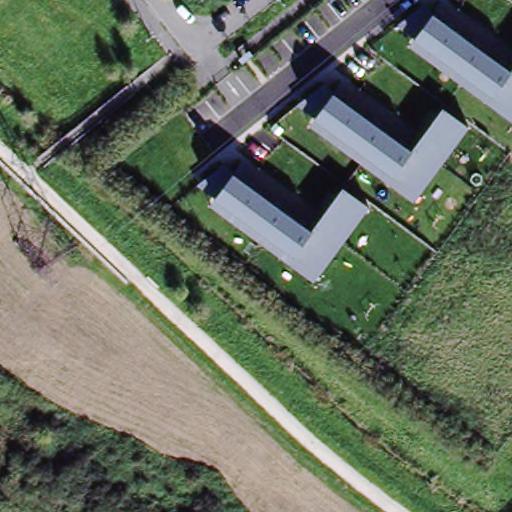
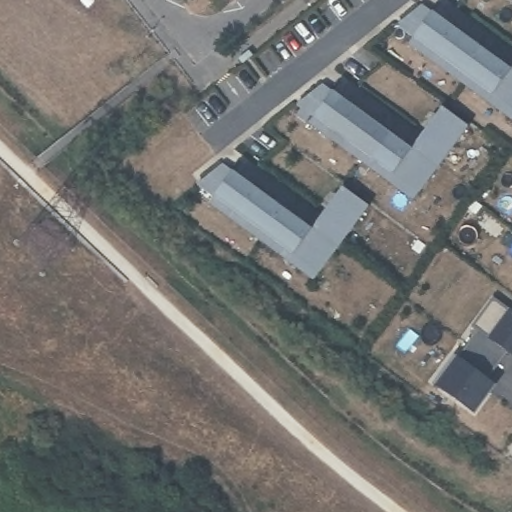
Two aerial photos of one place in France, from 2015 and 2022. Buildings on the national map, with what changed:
unchanged [(512,122),(406,47),(436,7),(512,61),(512,122)]
unchanged [(413,147),(443,105),(470,125),(415,204),(309,126),(336,88),(413,147)]
unchanged [(312,230),(341,185),(370,205),(315,283),(210,205),(233,172),(312,230)]
new [(475,320),(491,298),(512,313),(512,347),(510,346),(500,358),(473,338),(482,326),(475,320)]
new [(458,347),(464,351),(473,338),(500,358),(491,371),(498,376),(482,399),(442,370),(458,347)]

